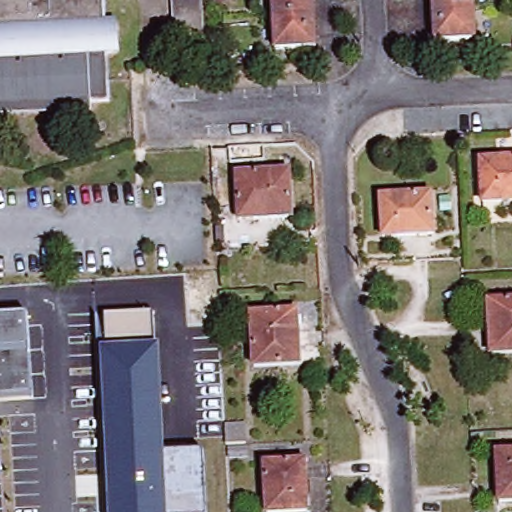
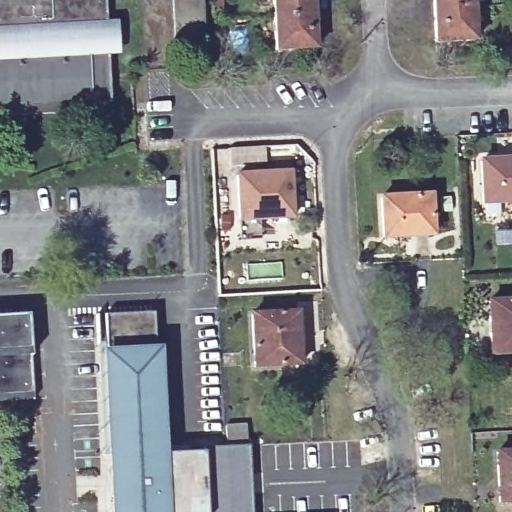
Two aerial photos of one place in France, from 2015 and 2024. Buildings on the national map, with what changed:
unchanged [(105,25),(113,25),(116,28),(118,42),(114,46),(106,46),(109,101),(0,108),(0,0),(103,0),(105,25)]
unchanged [(203,41),(176,42),(173,0),(200,0),(203,41)]
unchanged [(274,0),(312,0),(315,48),(277,50),(274,0)]
unchanged [(475,40),(437,42),(435,0),(473,0),(475,40)]
unchanged [(483,205),(481,161),(512,160),(512,203),(483,205)]
unchanged [(292,217),(240,220),(239,193),(238,175),(289,172),(292,217)]
unchanged [(382,198),(430,195),(432,236),(384,238),(382,198)]
unchanged [(490,306),(512,305),(512,358),(492,359),(490,306)]
unchanged [(251,314),(297,312),(300,365),(254,367),(251,314)]
unchanged [(153,347),(159,347),(165,456),(203,454),(206,512),(110,512),(100,352),(99,317),(153,313),(153,347)]
unchanged [(29,349),(32,396),(0,399),(0,317),(27,315),(29,349)]
unchanged [(224,426),(234,425),(235,445),(225,445),(224,426)]
new [(207,512),(206,449),(248,447),(251,512),(207,512)]
demolished [(229,458),(229,449),(246,448),(247,458),(229,458)]
unchanged [(512,451),(512,501),(500,502),(497,452),(512,451)]
demolished [(299,512),(266,512),(264,464),(305,462),(307,511),(299,512)]

